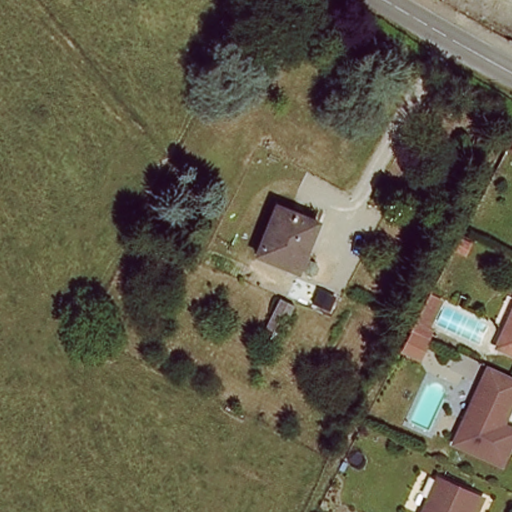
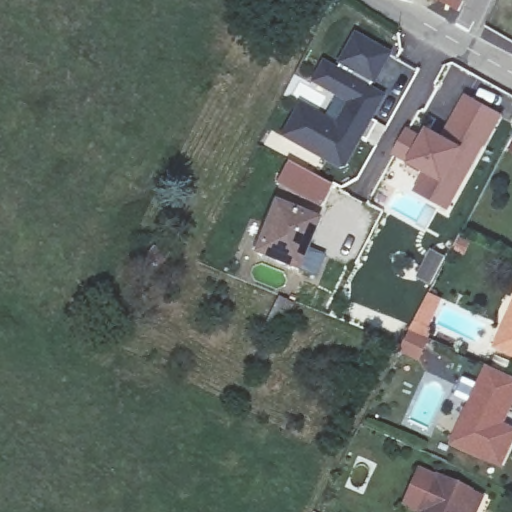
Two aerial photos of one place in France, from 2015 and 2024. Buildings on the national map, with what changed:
new [(300,105),(336,126),(348,105),(311,83),(325,60),(337,68),(356,33),(394,53),(375,89),(388,97),(347,171),(340,172),(282,138),(300,105)]
new [(425,137),(430,127),(445,136),(467,94),(505,116),(451,211),(415,193),(426,174),(409,164),(393,156),(409,128),(425,137)]
new [(289,163),(333,185),(323,206),(279,184),(289,163)]
unchanged [(319,219),(296,270),(260,254),(285,203),(319,219)]
new [(429,300),(441,307),(424,339),(412,334),(429,300)]
unchanged [(510,318),(512,314),(512,348),(495,340),(505,316),(510,318)]
unchanged [(483,359),(512,372),(512,389),(499,418),(512,425),(512,435),(500,464),(448,439),(483,359)]
demolished [(309,453),(292,488),(244,464),(261,430),(309,453)]
unchanged [(470,488),(475,491),(466,512),(414,512),(432,471),(470,488)]

